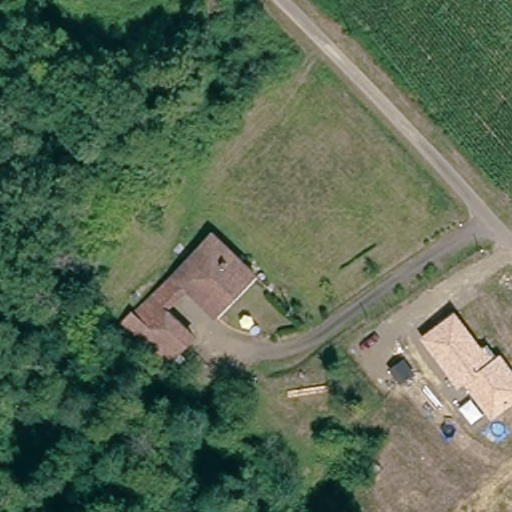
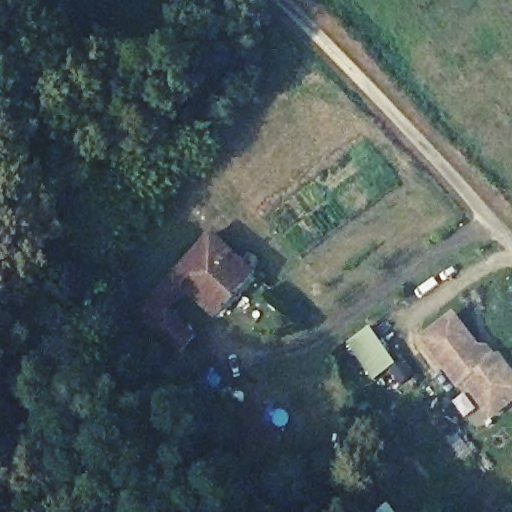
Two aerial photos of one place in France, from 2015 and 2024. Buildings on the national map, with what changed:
unchanged [(192,52),(159,21),(176,2),(208,37),(192,52)]
unchanged [(132,319),(141,311),(186,265),(179,254),(191,244),(197,251),(220,230),(256,265),(261,270),(218,311),(194,284),(173,303),(199,332),(182,350),(170,361),(150,338),(132,319)]
unchanged [(512,407),(492,422),(465,383),(457,391),(419,338),(455,310),(481,348),(488,345),(501,354),(512,368),(512,407)]
new [(372,380),(346,342),(369,326),(398,362),(403,357),(416,375),(400,386),(388,369),(372,380)]

